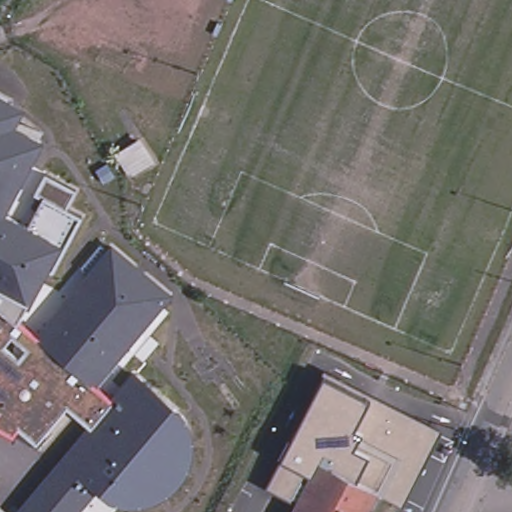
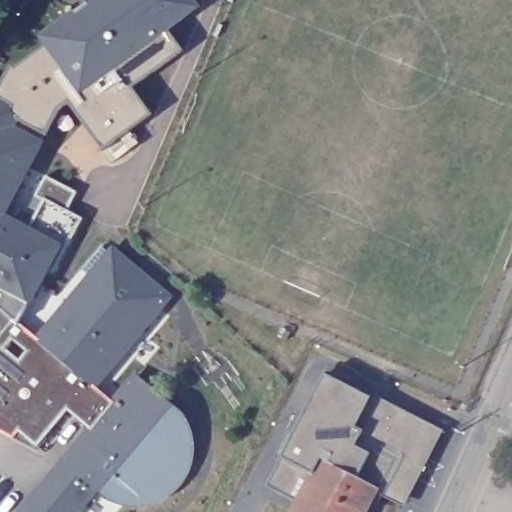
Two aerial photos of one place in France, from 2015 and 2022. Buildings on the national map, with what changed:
new [(170,31),(184,50),(133,86),(153,111),(103,150),(69,101),(57,107),(47,131),(46,142),(23,131),(17,127),(26,111),(0,96),(0,91),(10,67),(15,70),(46,49),(38,35),(87,0),(196,0),(201,7),(170,31)]
unchanged [(67,412),(39,449),(22,435),(19,436),(14,440),(0,433),(0,96),(26,111),(17,127),(23,131),(46,142),(9,216),(29,228),(42,204),(36,199),(47,177),(78,194),(69,210),(72,213),(80,219),(62,249),(31,308),(19,324),(23,328),(37,338),(89,276),(82,270),(101,250),(108,254),(114,247),(175,299),(98,390),(101,391),(112,402),(137,375),(175,407),(180,413),(190,425),(191,427),(195,442),(191,465),(179,484),(169,491),(152,502),(137,506),(125,507),(114,503),(101,495),(97,491),(82,512),(19,512),(89,428),(67,412)]
unchanged [(262,490),(280,457),(273,451),(284,432),(290,435),(323,371),(369,395),(442,433),(406,506),(380,491),(371,486),(315,458),(291,505),(262,490)]
unchanged [(315,458),(371,486),(358,512),(287,512),(291,505),(315,458)]

